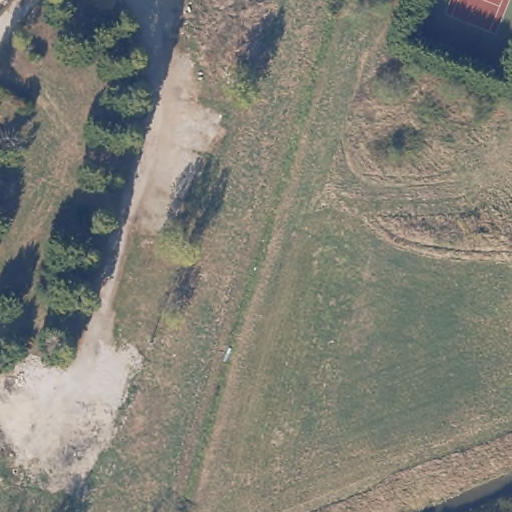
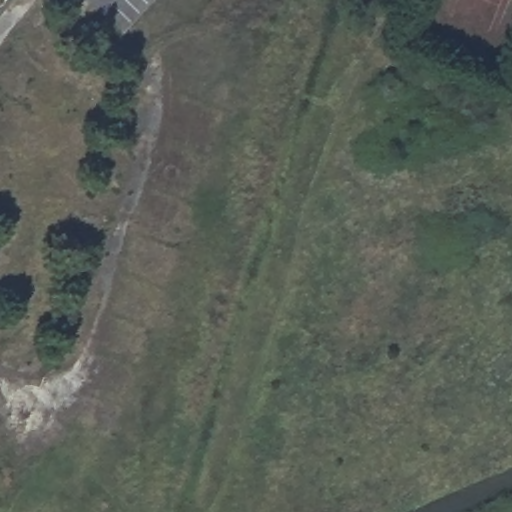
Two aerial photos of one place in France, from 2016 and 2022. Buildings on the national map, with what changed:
[]

